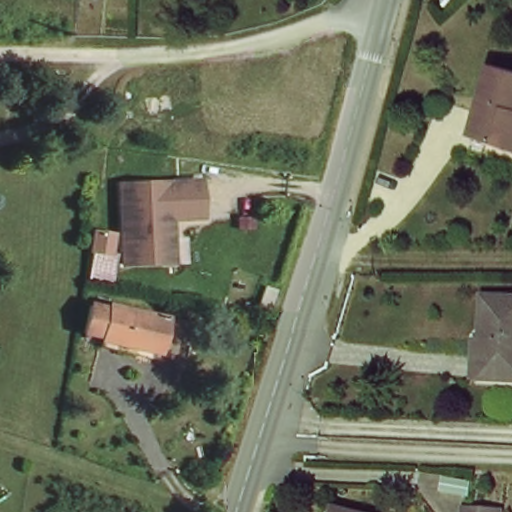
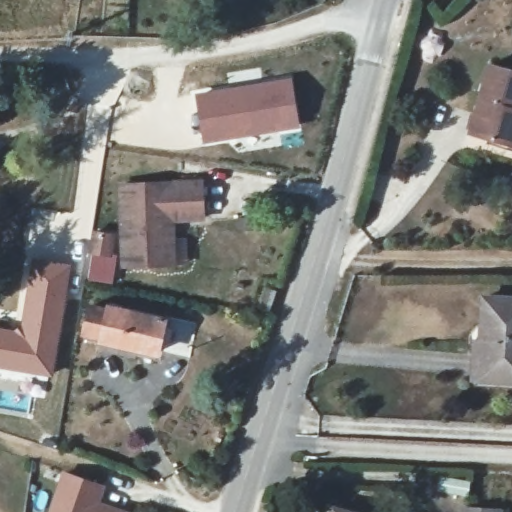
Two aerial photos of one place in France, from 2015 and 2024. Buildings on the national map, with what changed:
unchanged [(487,145),(489,135),(470,129),(486,61),(512,67),(512,93),(510,103),(512,103),(512,150),(487,145)]
new [(204,143),(194,92),(292,78),(301,127),(204,143)]
unchanged [(122,216),(120,179),(206,175),(203,213),(180,213),(167,223),(165,224),(164,262),(124,263),(122,216)]
new [(20,324),(29,256),(71,262),(53,375),(0,368),(0,325),(12,327),(20,324)]
unchanged [(289,301),(285,312),(275,311),(279,298),(289,301)]
unchanged [(484,380),(485,356),(476,355),(480,298),(512,299),(512,381),(484,380)]
unchanged [(165,321),(158,353),(88,336),(95,303),(165,321)]
new [(106,498),(113,501),(137,512),(57,512),(76,466),(113,482),(106,498)]
unchanged [(463,512),(463,505),(502,506),(501,512),(463,512)]
unchanged [(345,512),(330,512),(331,509),(345,512)]

